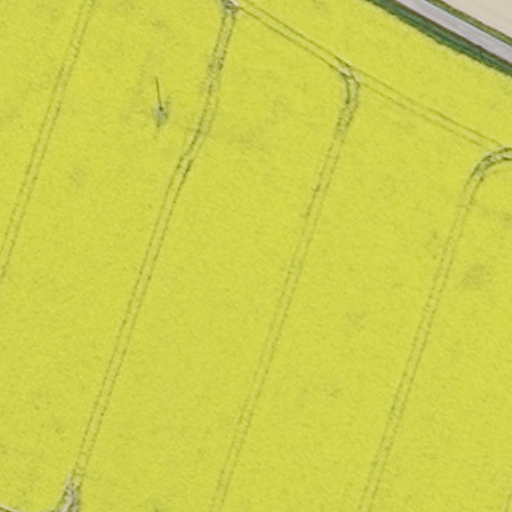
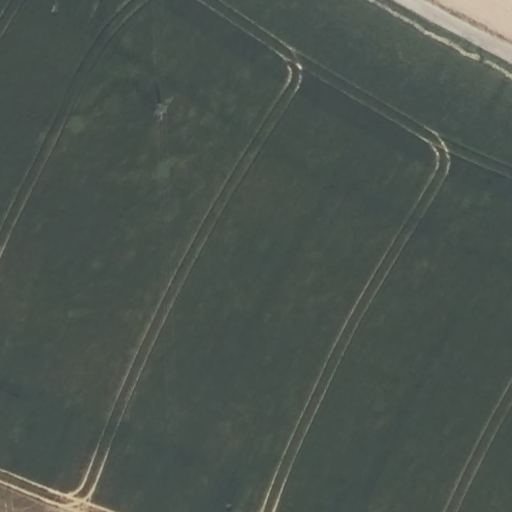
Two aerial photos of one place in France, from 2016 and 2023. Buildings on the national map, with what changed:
[]

